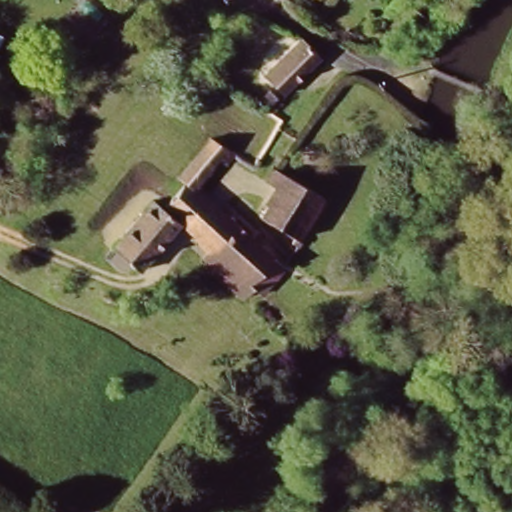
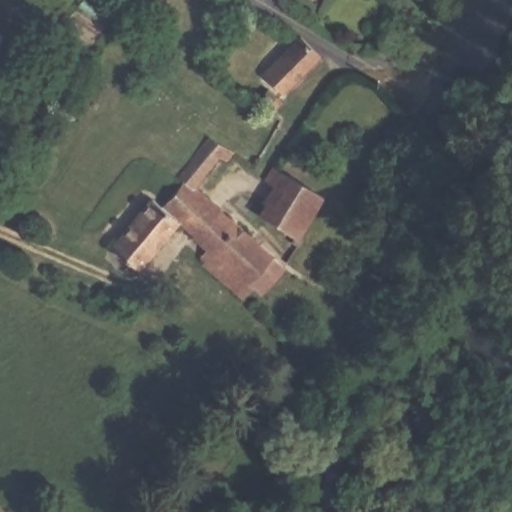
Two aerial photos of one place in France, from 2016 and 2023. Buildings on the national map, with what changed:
unchanged [(319,52),(282,90),(262,70),(300,33),(319,52)]
unchanged [(266,87),(282,99),(272,110),(255,99),(266,87)]
unchanged [(149,204),(152,199),(160,206),(162,207),(184,182),(182,180),(179,177),(182,172),(198,154),(202,149),(212,138),(217,142),(232,154),(225,164),(218,159),(193,190),(202,197),(209,204),(217,211),(227,219),(240,230),(267,254),(270,257),(284,269),(260,297),(252,290),(242,301),(212,275),(202,266),(205,262),(199,257),(202,254),(206,249),(204,247),(193,237),(177,224),(174,227),(147,258),(138,269),(128,261),(112,247),(122,236),(149,204)]
unchanged [(297,242),(260,220),(266,209),(263,207),(272,191),(264,185),(272,175),(274,172),(322,202),(297,242),(304,247),(300,253),(293,248),(297,242)]

